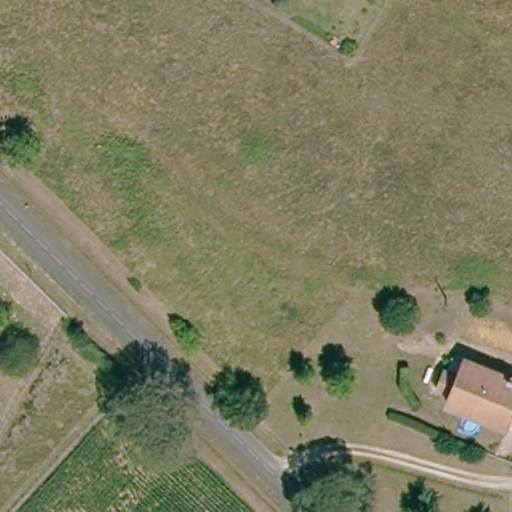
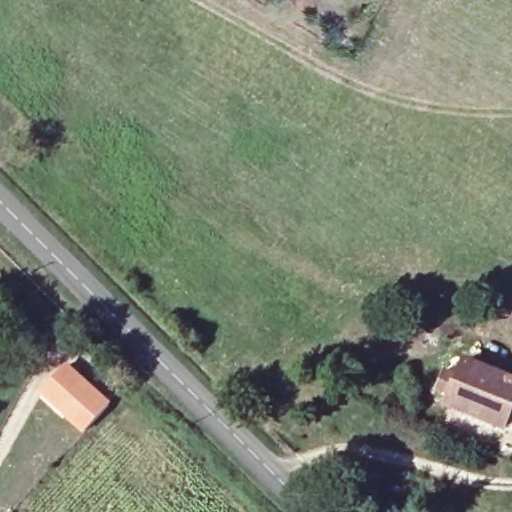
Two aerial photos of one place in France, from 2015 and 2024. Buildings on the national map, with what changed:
new [(66,361),(112,401),(83,434),(37,392),(66,361)]
unchanged [(508,430),(448,406),(454,393),(440,387),(446,371),(460,376),(466,363),(512,381),(512,420),(508,430)]

